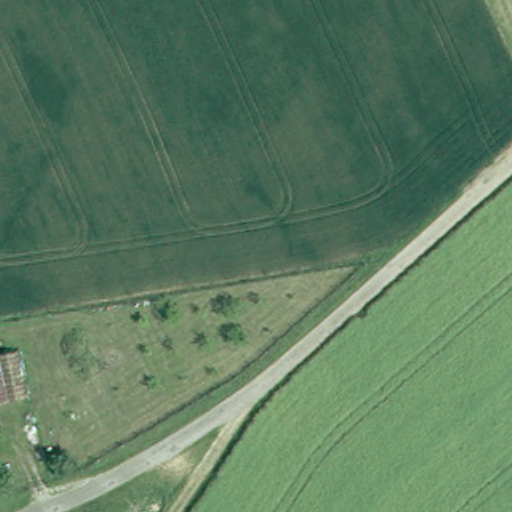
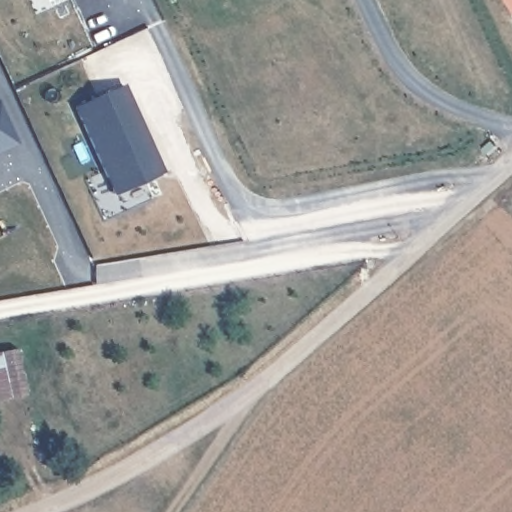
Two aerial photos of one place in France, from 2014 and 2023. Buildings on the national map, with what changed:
new [(510,0),(512,0),(512,5),(510,0)]
new [(123,83),(163,173),(114,195),(73,106),(123,83)]
new [(0,153),(0,117),(14,147),(0,153)]
unchanged [(25,396),(7,399),(0,367),(0,351),(15,349),(25,396)]

